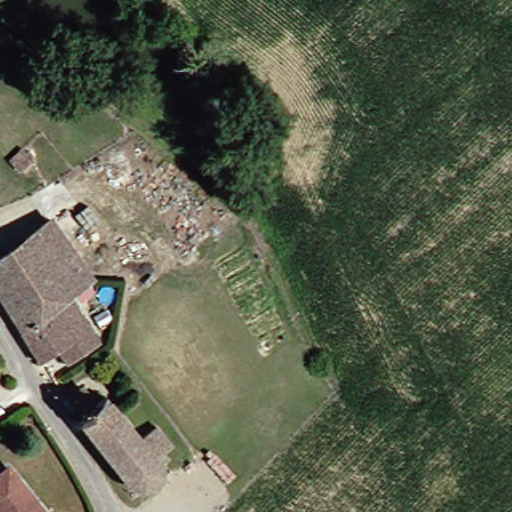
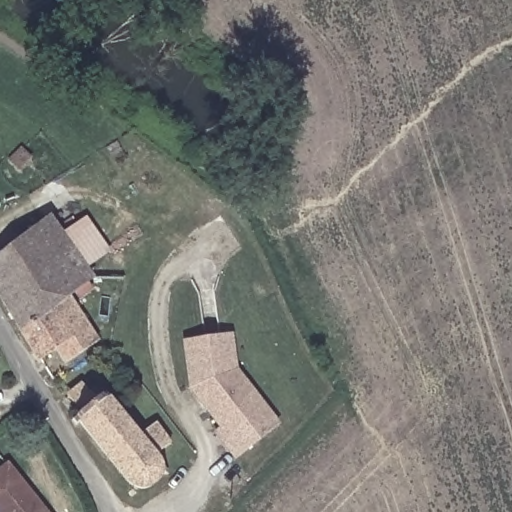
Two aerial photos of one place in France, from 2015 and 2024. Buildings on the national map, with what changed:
unchanged [(64,357),(54,366),(0,289),(0,261),(50,222),(92,280),(68,300),(84,321),(89,317),(104,337),(70,364),(64,357)]
new [(253,405),(259,400),(232,369),(224,331),(232,329),(240,367),(285,418),(273,428),(253,405)]
new [(259,400),(253,405),(273,428),(245,453),(224,429),(229,424),(197,386),(187,338),(224,331),(232,369),(259,400)]
unchanged [(154,426),(167,442),(156,453),(164,462),(164,475),(158,484),(148,487),(138,486),(82,419),(87,415),(72,397),(96,380),(110,396),(144,436),(154,426)]
unchanged [(51,512),(4,512),(0,507),(0,478),(14,467),(51,512)]

